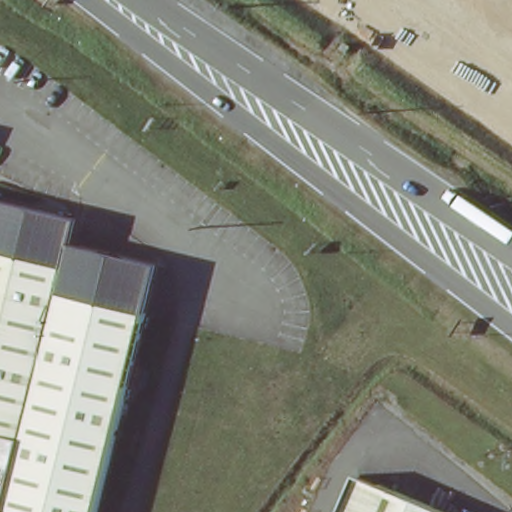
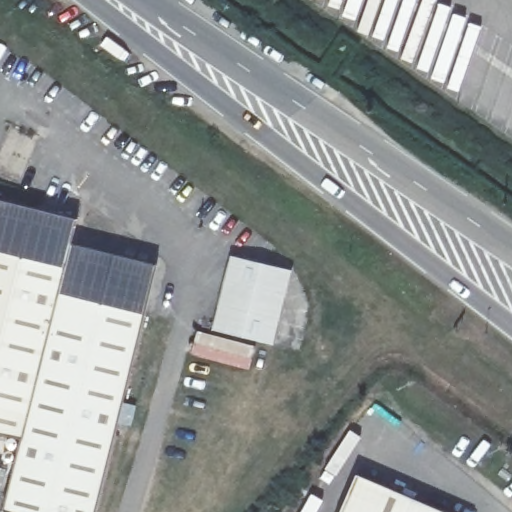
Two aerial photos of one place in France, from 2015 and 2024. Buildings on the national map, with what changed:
unchanged [(67,244),(153,266),(92,512),(5,512),(0,511),(0,506),(17,438),(0,434),(0,202),(73,220),(67,244)]
new [(232,256),(292,271),(274,345),(214,330),(232,256)]
unchanged [(440,512),(336,512),(352,475),(440,512)]

